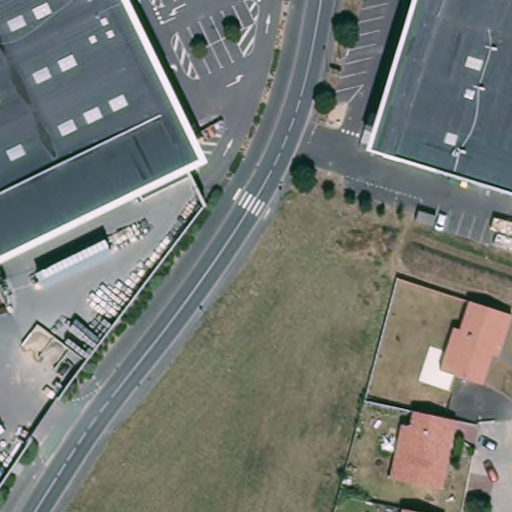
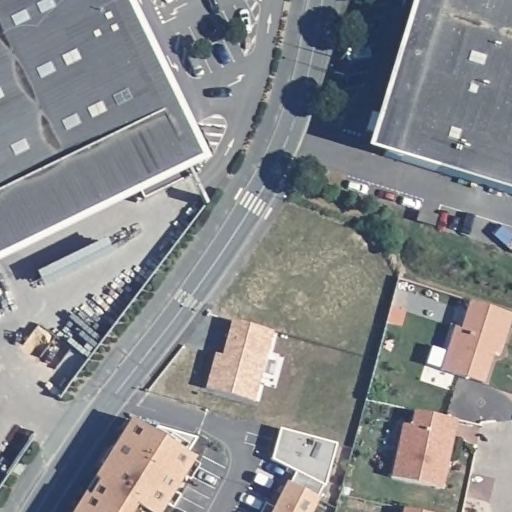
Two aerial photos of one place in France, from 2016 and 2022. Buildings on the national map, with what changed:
unchanged [(0,260),(0,0),(126,0),(204,161),(0,260)]
unchanged [(512,0),(512,193),(367,149),(411,0),(512,0)]
unchanged [(492,348),(482,379),(440,365),(454,322),(460,325),(470,296),(512,310),(502,342),(498,351),(492,348)]
unchanged [(457,437),(453,456),(446,488),(395,477),(407,424),(415,426),(418,411),(461,421),(457,437)]
new [(131,418),(154,432),(158,426),(197,437),(187,453),(194,458),(160,512),(72,512),(131,418)]
new [(273,507),(286,482),(289,483),(296,471),(272,459),(280,427),(337,443),(325,486),(323,485),(317,497),(318,498),(312,512),(259,512),(265,502),(273,507)]
unchanged [(403,508),(421,512),(402,512),(403,508)]

